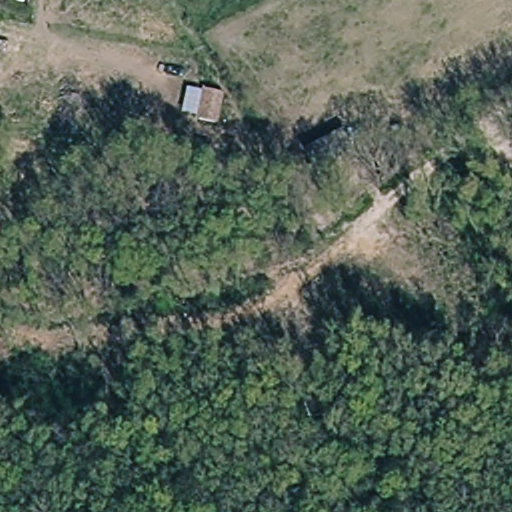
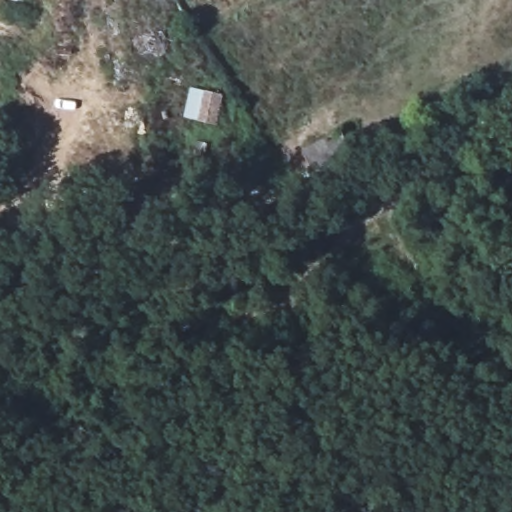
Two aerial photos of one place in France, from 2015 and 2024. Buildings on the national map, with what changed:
unchanged [(205,92),(224,95),(219,126),(201,123),(205,92)]
unchanged [(302,153),(344,127),(357,150),(316,173),(302,153)]

